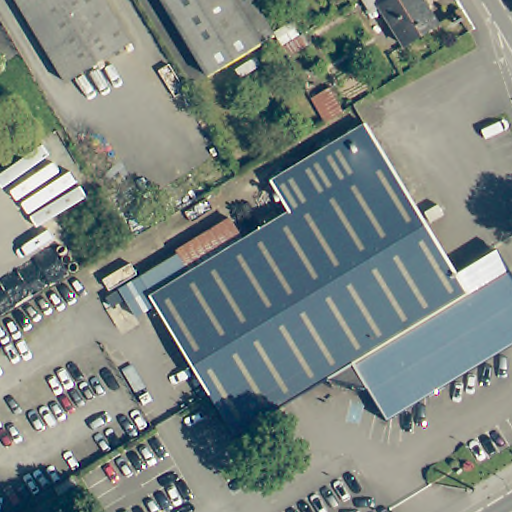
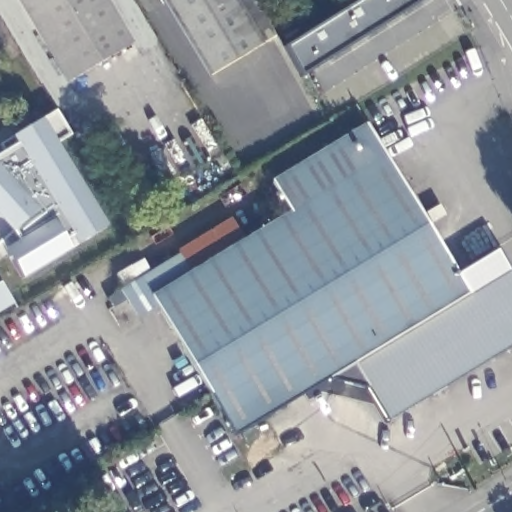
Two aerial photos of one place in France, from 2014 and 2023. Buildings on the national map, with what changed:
unchanged [(69,84),(18,0),(106,0),(133,45),(69,84)]
unchanged [(209,71),(167,0),(260,0),(278,30),(209,71)]
new [(282,47),(360,0),(419,0),(301,77),(282,47)]
demolished [(407,45),(383,5),(374,11),(367,0),(427,0),(441,22),(407,45)]
new [(5,249),(1,241),(0,242),(0,152),(16,144),(12,136),(41,119),(56,107),(71,134),(56,142),(105,226),(23,279),(5,249)]
unchanged [(333,391),(328,382),(237,435),(159,302),(138,315),(122,287),(143,275),(183,251),(194,270),(247,239),(293,211),(274,180),(369,124),(460,274),(501,250),(512,268),(512,350),(390,422),(371,389),(360,395),(333,391)]
unchanged [(247,239),(194,270),(183,251),(180,247),(233,216),(247,239)]

